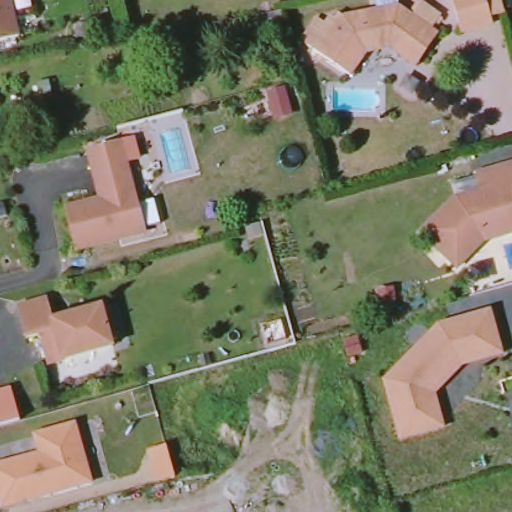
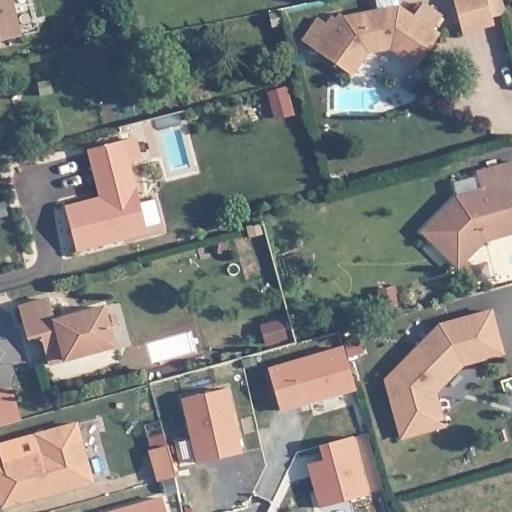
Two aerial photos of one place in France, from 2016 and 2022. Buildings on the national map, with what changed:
unchanged [(18,38),(0,42),(0,0),(9,0),(18,38)]
unchanged [(460,33),(450,0),(485,0),(492,23),(460,33)]
unchanged [(398,3),(437,32),(413,63),(386,45),(364,50),(347,72),(317,50),(343,13),(398,3)]
unchanged [(283,24),(272,26),(270,14),(282,12),(283,24)]
unchanged [(119,138),(140,224),(134,232),(73,248),(61,204),(100,195),(96,182),(92,183),(83,148),(119,138)]
unchanged [(479,190),(472,172),(512,162),(512,193),(510,194),(512,201),(512,233),(481,241),(454,268),(418,232),(453,197),(479,190)]
unchanged [(13,306),(43,297),(50,318),(98,305),(109,344),(42,363),(34,333),(22,337),(13,306)]
unchanged [(496,346),(457,357),(437,392),(438,396),(448,431),(402,445),(391,409),(386,388),(408,349),(414,337),(418,330),(424,321),(484,304),(496,346)]
new [(280,410),(268,369),(343,346),(355,390),(280,410)]
unchanged [(11,388),(21,421),(0,426),(0,391),(11,388)]
new [(196,463),(181,400),(228,389),(242,452),(196,463)]
unchanged [(76,426),(92,483),(3,508),(0,499),(0,466),(41,455),(36,437),(76,426)]
new [(318,508),(306,466),(322,460),(318,446),(353,437),(369,493),(318,508)]
new [(165,512),(109,512),(161,498),(165,512)]

